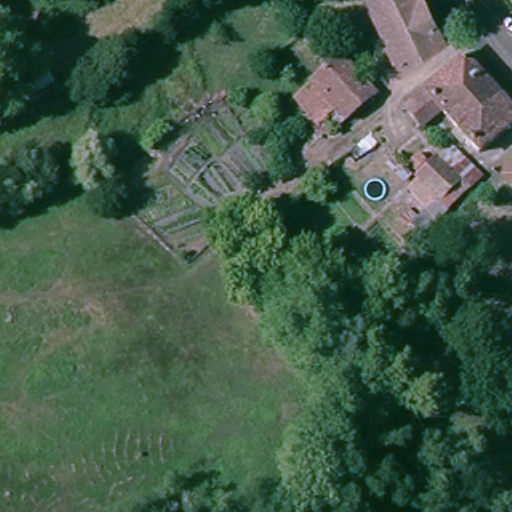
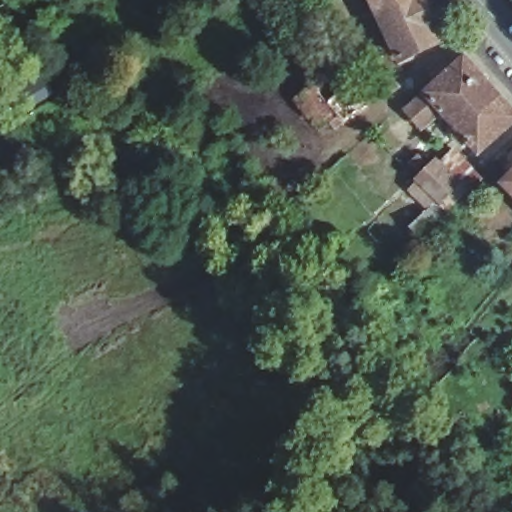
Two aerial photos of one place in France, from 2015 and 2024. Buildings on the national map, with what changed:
unchanged [(379,0),(426,0),(439,30),(399,48),(379,0)]
unchanged [(340,54),(382,98),(341,132),(324,112),(310,119),(293,100),(340,54)]
unchanged [(512,109),(512,126),(479,154),(442,114),(424,131),(406,111),(465,58),(512,109)]
unchanged [(438,169),(460,190),(443,210),(420,187),(438,169)]
unchanged [(509,183),(512,179),(512,187),(509,183)]

